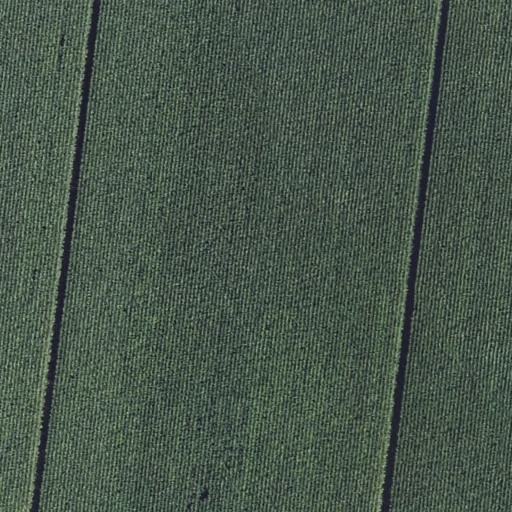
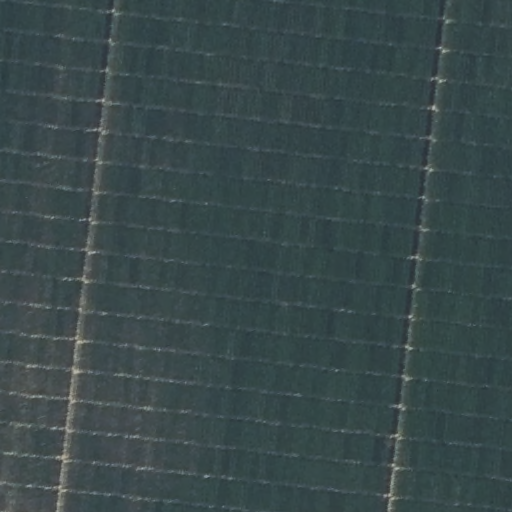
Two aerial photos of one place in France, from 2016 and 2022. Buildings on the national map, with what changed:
[]

